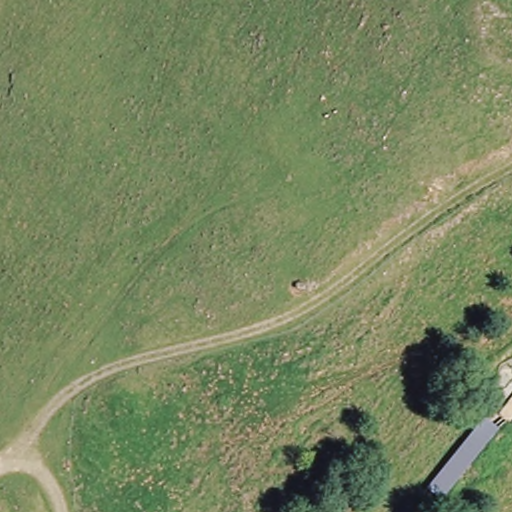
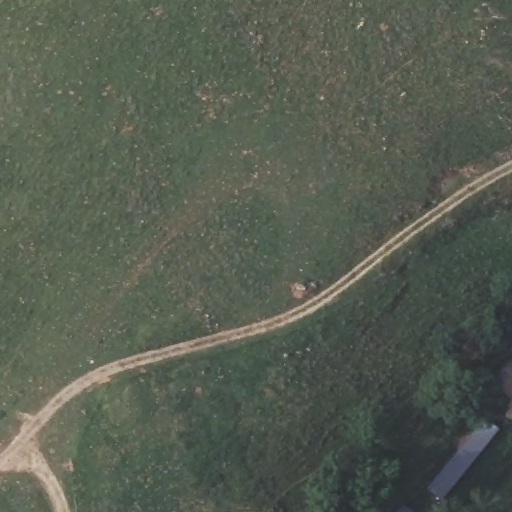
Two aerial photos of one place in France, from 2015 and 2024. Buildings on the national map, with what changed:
unchanged [(487,413),(507,431),(448,504),(428,488),(487,413)]

